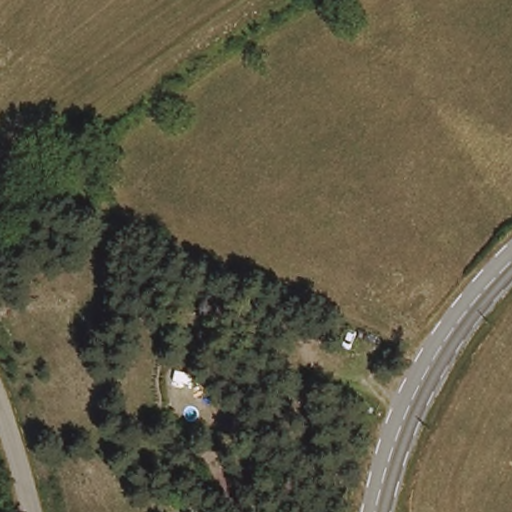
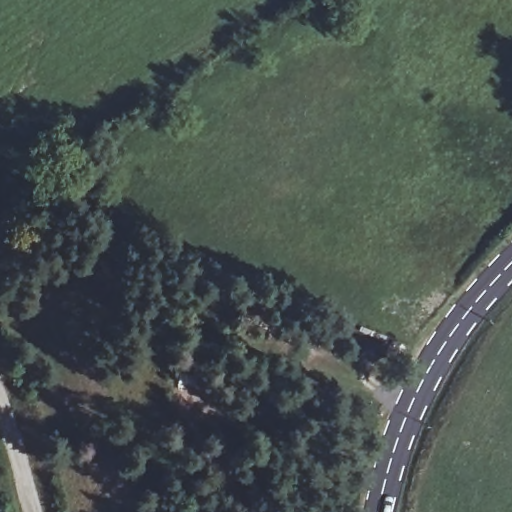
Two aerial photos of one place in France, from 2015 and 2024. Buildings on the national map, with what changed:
[]

